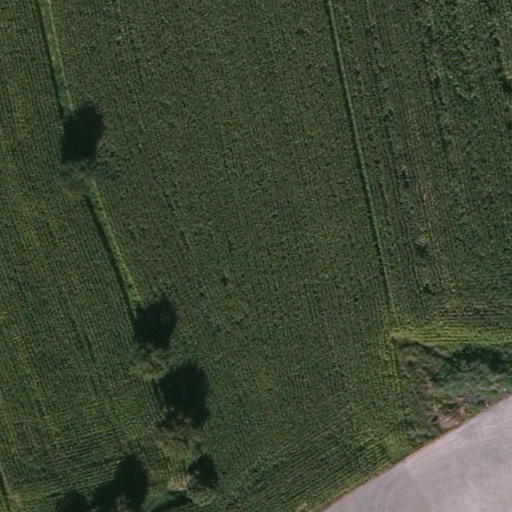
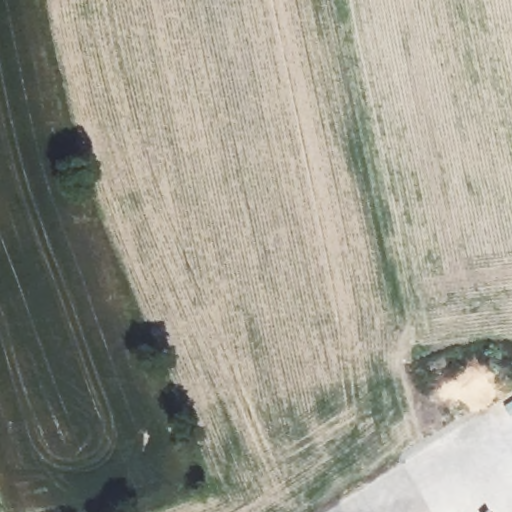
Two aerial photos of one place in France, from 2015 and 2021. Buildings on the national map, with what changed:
[]

